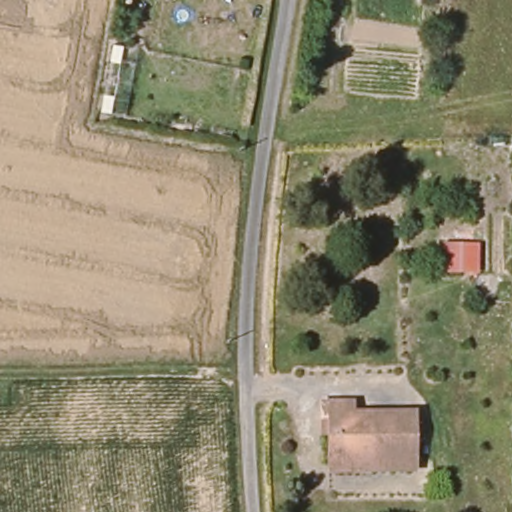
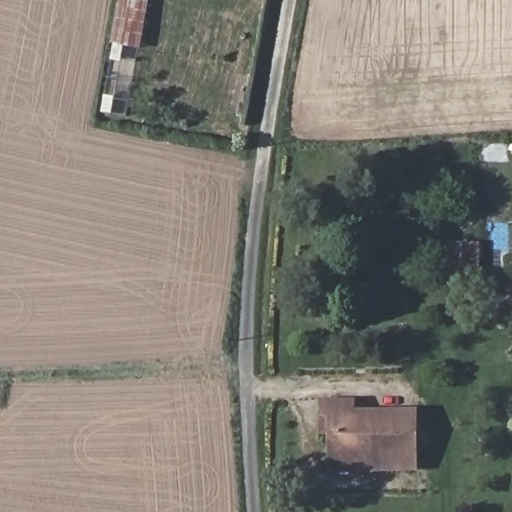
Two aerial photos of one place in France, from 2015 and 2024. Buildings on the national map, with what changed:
new [(120,62),(107,60),(118,0),(147,0),(138,49),(123,46),(120,62)]
unchanged [(446,263),(471,263),(481,263),(481,289),(471,289),(446,288),(446,263)]
unchanged [(336,466),(335,436),(326,436),(326,411),(356,411),(356,418),(419,418),(420,472),(377,472),(336,473),(336,466)]

